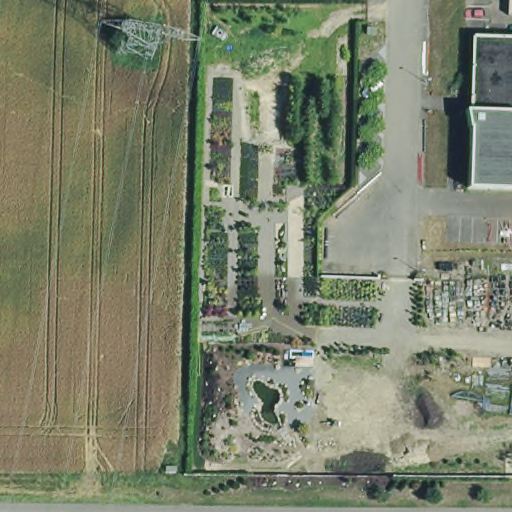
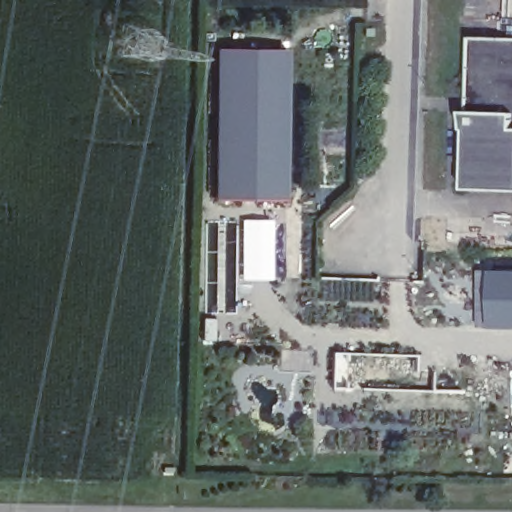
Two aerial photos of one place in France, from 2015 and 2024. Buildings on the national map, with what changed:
unchanged [(467,111),(472,110),(475,37),(512,38),(512,192),(464,190),(467,111)]
new [(295,45),(290,195),(215,200),(217,43),(295,45)]
new [(512,325),(500,325),(501,263),(512,263),(512,325)]

